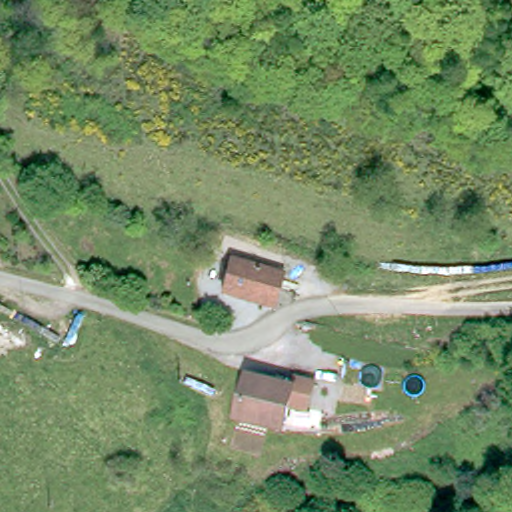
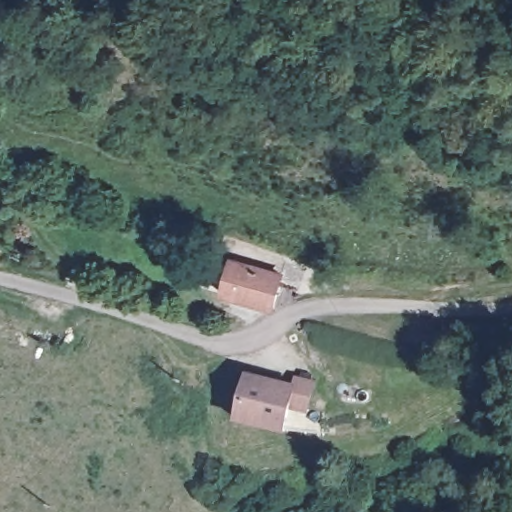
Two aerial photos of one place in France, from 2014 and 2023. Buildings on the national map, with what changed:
unchanged [(219,289),(231,252),(286,268),(308,270),(303,288),(281,282),(272,305),(219,289)]
unchanged [(279,428),(237,419),(250,370),(251,371),(293,378),(285,411),(279,428)]

